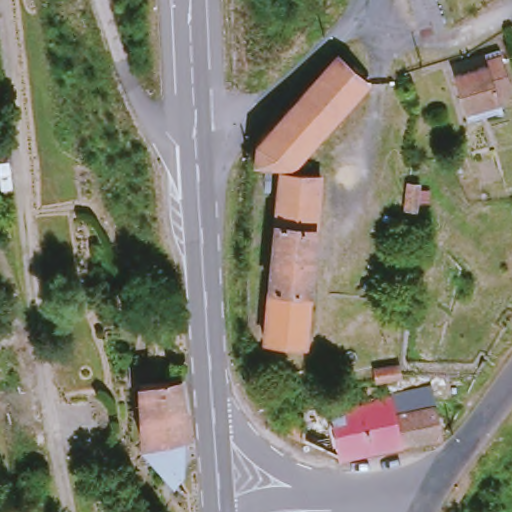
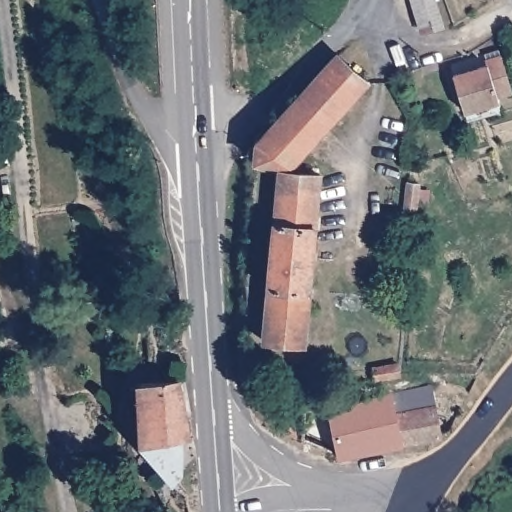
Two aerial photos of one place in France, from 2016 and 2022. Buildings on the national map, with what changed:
unchanged [(420,34),(411,0),(436,0),(444,28),(420,34)]
unchanged [(337,56),(368,87),(369,89),(330,127),(299,95),(337,56)]
unchanged [(460,84),(490,76),(489,69),(503,66),(512,94),(512,101),(500,105),(502,110),(469,119),(460,84)]
unchanged [(330,127),(305,154),(272,123),(299,95),(330,127)]
unchanged [(260,135),(272,123),(305,154),(292,166),(257,164),(260,135)]
unchanged [(278,175),(323,178),(312,347),(266,344),(278,175)]
unchanged [(404,177),(417,179),(414,212),(402,212),(404,177)]
unchanged [(372,367),(402,359),(407,376),(376,384),(372,367)]
unchanged [(142,420),(140,387),(182,382),(188,433),(187,443),(177,458),(178,473),(173,482),(146,448),(142,420)]
unchanged [(293,425),(305,425),(306,407),(335,403),(338,413),(434,392),(445,443),(342,457),(293,442),(290,439),(293,425)]

